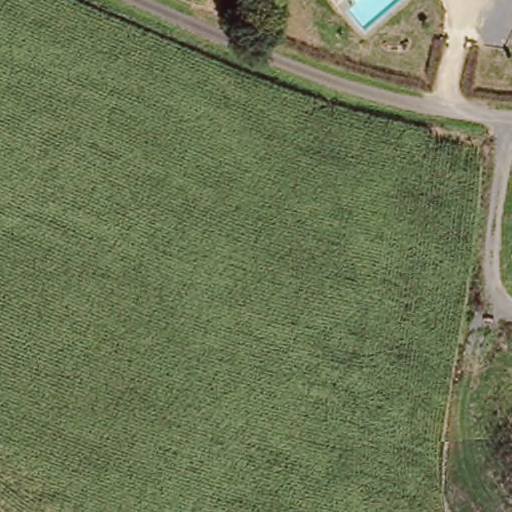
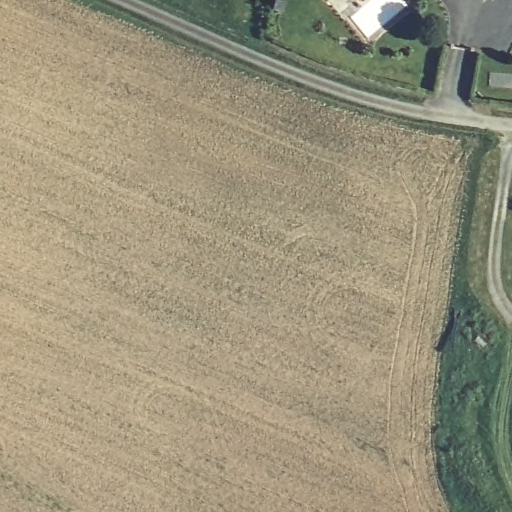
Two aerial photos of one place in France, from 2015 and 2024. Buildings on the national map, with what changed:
unchanged [(329,0),(331,0),(330,1),(329,0)]

